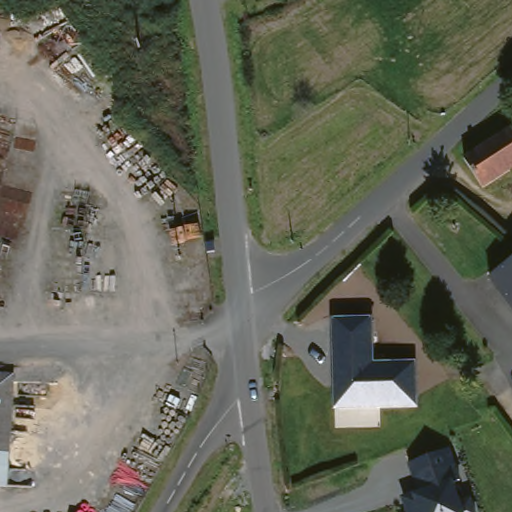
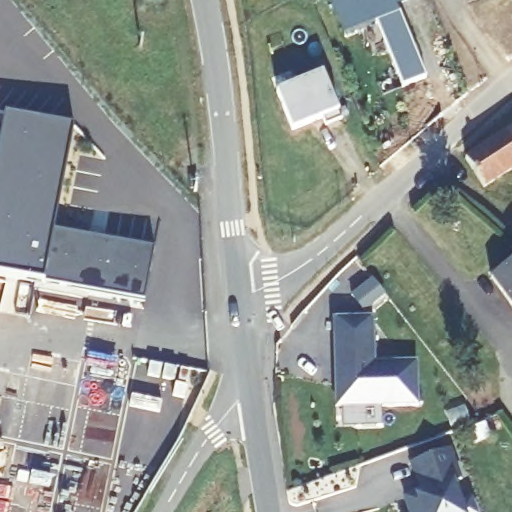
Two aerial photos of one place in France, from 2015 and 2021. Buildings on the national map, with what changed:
new [(423,0),(426,5),(409,12),(438,84),(415,93),(388,30),(357,43),(342,9),(362,0),(423,0)]
new [(4,111),(74,125),(55,227),(89,235),(88,241),(103,244),(104,237),(155,247),(145,301),(0,273),(0,132),(4,111)]
unchanged [(512,132),(512,176),(495,190),(473,162),(512,132)]
unchanged [(489,281),(510,263),(504,255),(502,252),(511,245),(512,243),(512,308),(502,297),(489,281)]
unchanged [(334,318),(374,318),(375,362),(417,362),(419,408),(336,410),(334,318)]
unchanged [(15,378),(7,487),(0,487),(0,378),(15,378)]
unchanged [(402,497),(419,491),(410,465),(451,449),(463,481),(455,483),(463,505),(472,500),(476,512),(407,512),(402,497)]

